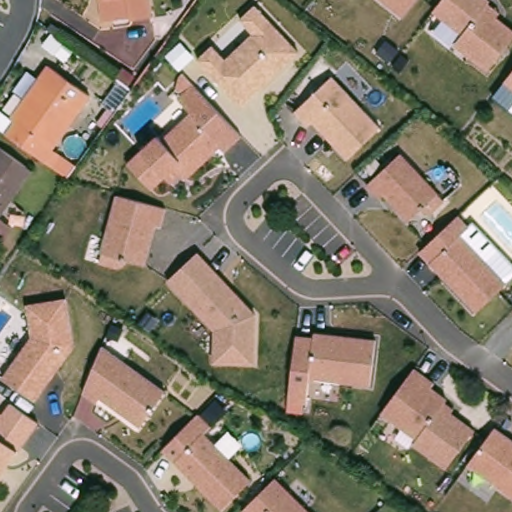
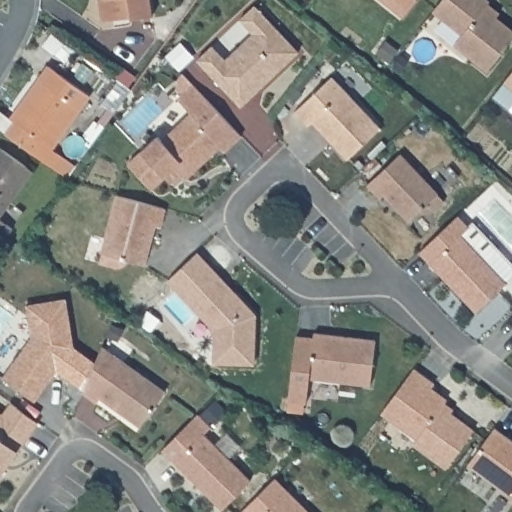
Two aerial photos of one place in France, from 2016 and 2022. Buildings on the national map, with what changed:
unchanged [(131,17),(102,21),(99,0),(150,0),(152,15),(131,19),(131,17)]
unchanged [(383,0),(415,0),(403,15),(383,0)]
unchanged [(454,43),(462,33),(433,10),(441,0),(488,0),(489,1),(486,4),(498,14),(496,17),(512,30),(512,39),(488,70),(454,43)]
unchanged [(199,59),(214,45),(225,57),(252,31),(240,17),(256,1),(299,50),(244,106),(199,59)]
unchanged [(91,95),(52,147),(61,153),(51,167),(22,146),(4,133),(0,130),(0,110),(9,117),(48,64),(91,95)]
unchanged [(512,72),(512,88),(504,82),(512,72)]
unchanged [(380,127),(347,158),(313,121),(308,125),(295,111),(332,76),(380,127)]
unchanged [(219,146),(185,177),(174,166),(151,188),(128,163),(158,135),(162,140),(192,112),(178,98),(193,84),(200,92),(207,98),(216,108),(241,135),(224,151),(219,146)]
unchanged [(34,170),(0,217),(0,146),(34,170)]
unchanged [(444,200),(432,212),(430,213),(427,214),(424,213),(422,212),(420,209),(409,220),(384,194),(380,198),(367,184),(399,153),(444,200)]
unchanged [(76,167),(67,179),(53,169),(62,157),(76,167)]
unchanged [(143,264),(127,259),(126,260),(126,261),(125,261),(125,262),(124,263),(123,263),(123,264),(122,264),(121,265),(120,265),(119,266),(118,266),(117,266),(116,266),(115,266),(99,262),(117,195),(165,207),(160,226),(154,224),(143,264)]
unchanged [(506,283),(476,311),(420,251),(457,216),(468,227),(460,235),(506,283)]
unchanged [(14,227),(4,240),(0,237),(0,217),(14,227)]
unchanged [(255,314),(253,363),(213,361),(214,329),(168,279),(189,259),(197,252),(255,314)]
unchanged [(4,376),(31,337),(25,302),(67,295),(75,349),(38,399),(4,376)]
unchanged [(370,386),(308,377),(313,332),(375,340),(370,386)]
unchanged [(140,426),(100,397),(96,402),(83,392),(82,392),(102,346),(165,391),(140,426)]
unchanged [(447,467),(413,443),(417,438),(382,412),(414,368),(434,382),(430,387),(447,399),(445,402),(454,408),(451,412),(474,429),(447,467)]
unchanged [(2,414),(11,402),(36,420),(38,422),(0,475),(0,413),(2,414)]
unchanged [(250,480),(222,509),(162,449),(173,438),(197,413),(210,426),(203,433),(250,480)]
unchanged [(486,438),(494,427),(512,440),(512,497),(467,464),(486,438)]
unchanged [(309,512),(245,512),(242,510),(274,478),(309,512)]

